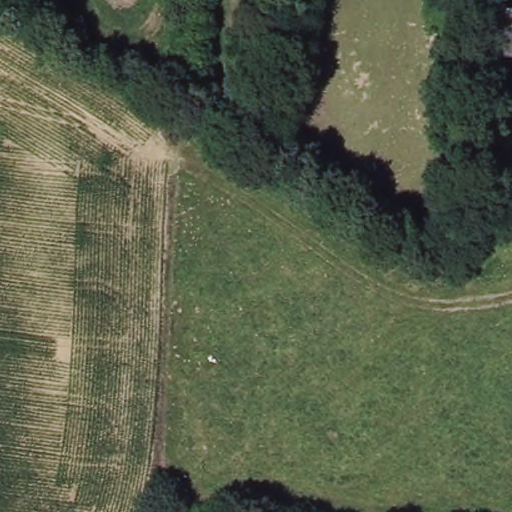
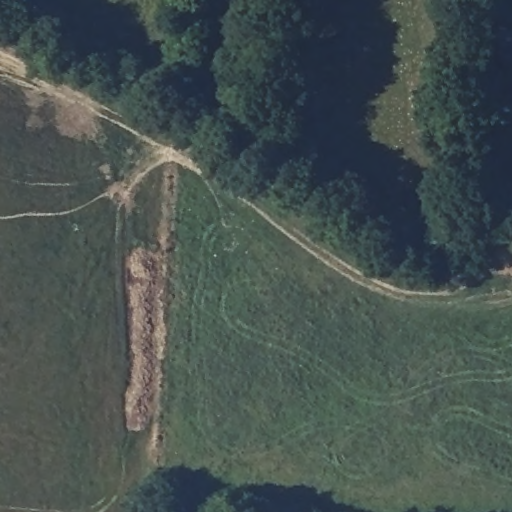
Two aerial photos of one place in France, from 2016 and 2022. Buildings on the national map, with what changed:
unchanged [(490,57),(489,9),(512,10),(512,59),(490,57)]

